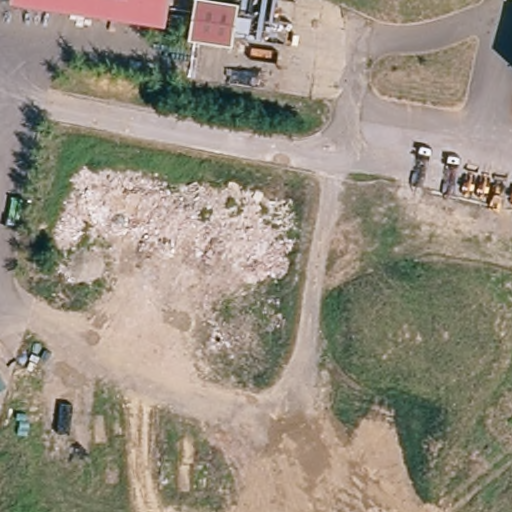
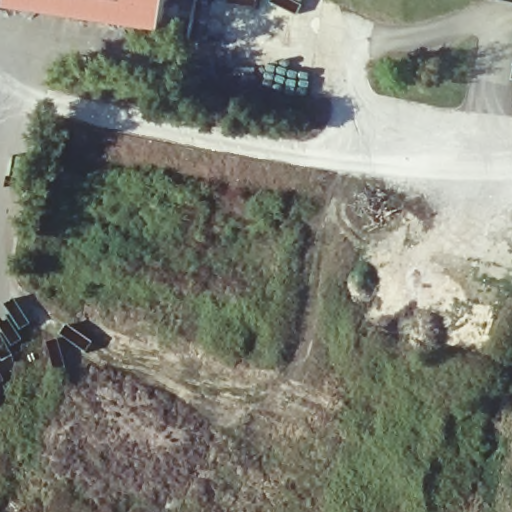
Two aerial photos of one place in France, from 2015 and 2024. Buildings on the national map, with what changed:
unchanged [(61,6),(26,0),(123,0),(173,8),(170,22),(61,6)]
unchanged [(123,0),(174,0),(173,8),(123,0)]
unchanged [(215,0),(235,3),(233,19),(189,11),(191,0),(215,0)]
unchanged [(233,19),(229,46),(185,40),(189,11),(233,19)]

